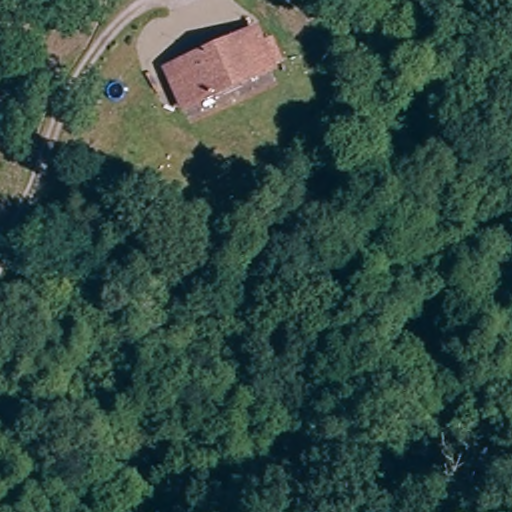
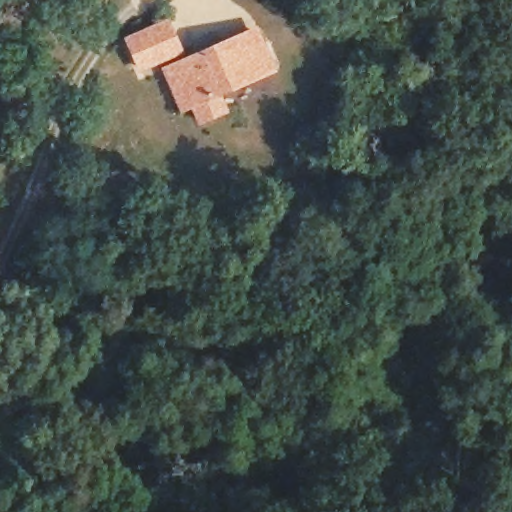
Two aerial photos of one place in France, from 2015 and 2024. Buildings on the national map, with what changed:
new [(169,18),(185,52),(138,74),(124,37),(169,18)]
unchanged [(255,30),(272,66),(186,107),(169,71),(255,30)]

